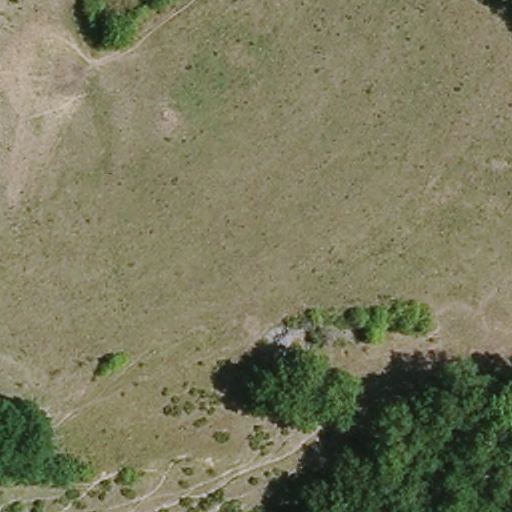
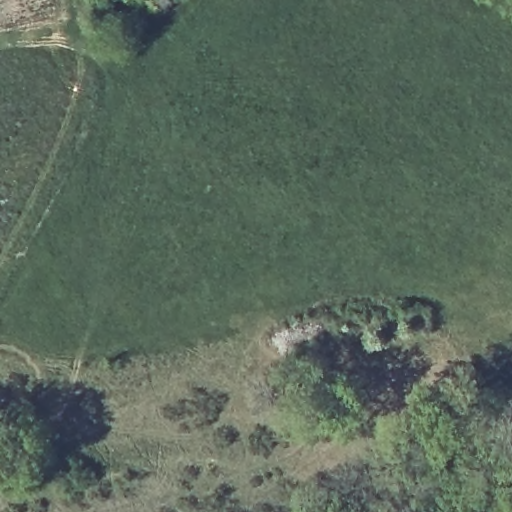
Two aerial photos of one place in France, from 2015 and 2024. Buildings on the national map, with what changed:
[]

